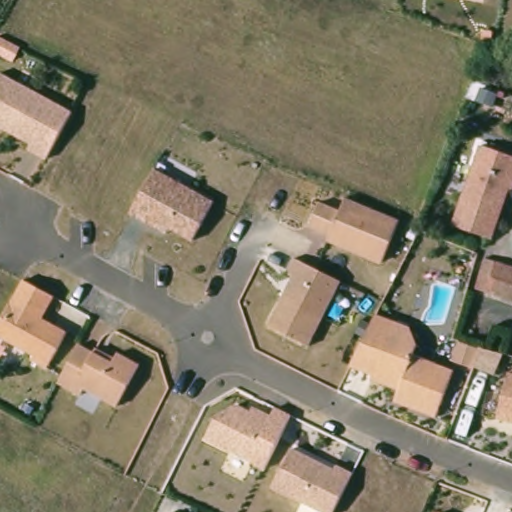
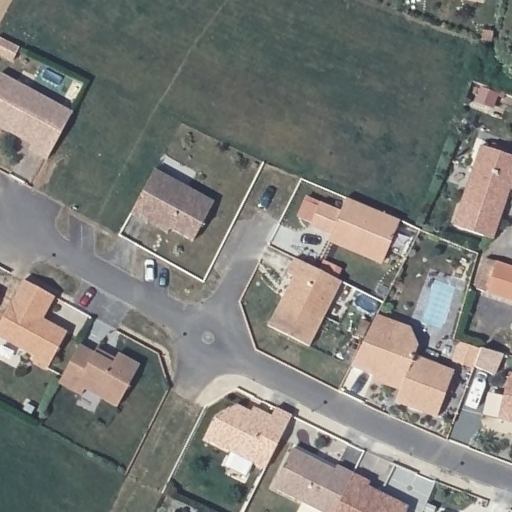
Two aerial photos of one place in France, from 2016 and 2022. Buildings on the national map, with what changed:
unchanged [(0,129),(0,72),(1,71),(72,111),(45,158),(30,150),(32,146),(0,129)]
unchanged [(512,155),(512,192),(496,239),(456,226),(484,145),(512,155)]
unchanged [(214,201),(193,240),(174,229),(170,234),(132,214),(155,169),(214,201)]
unchanged [(341,209),(346,198),(400,220),(382,266),(327,243),(331,235),(310,227),(320,202),(341,209)]
unchanged [(487,256),(512,264),(512,298),(481,287),(487,256)]
unchanged [(288,274),(297,257),(342,281),(309,347),(268,326),(293,276),(288,274)]
unchanged [(66,333),(47,366),(32,359),(35,354),(0,338),(0,324),(22,283),(55,299),(45,319),(66,333)]
unchanged [(400,392),(371,382),(372,376),(350,368),(376,316),(411,327),(417,346),(413,357),(412,359),(451,370),(437,419),(395,404),(400,392)]
unchanged [(95,351),(98,347),(117,358),(120,353),(139,363),(117,408),(85,390),(81,396),(57,383),(79,343),(95,351)]
unchanged [(497,422),(507,375),(512,376),(512,425),(497,422)]
unchanged [(250,413),(254,408),(271,417),(275,410),(289,416),(266,469),(205,441),(205,440),(215,416),(237,406),(250,413)]
unchanged [(337,469),(340,466),(353,473),(333,512),(323,512),(273,487),(292,449),(337,469)]
new [(356,474),(371,482),(368,486),(408,506),(405,512),(335,512),(356,474)]
unchanged [(184,512),(167,512),(170,505),(184,512)]

